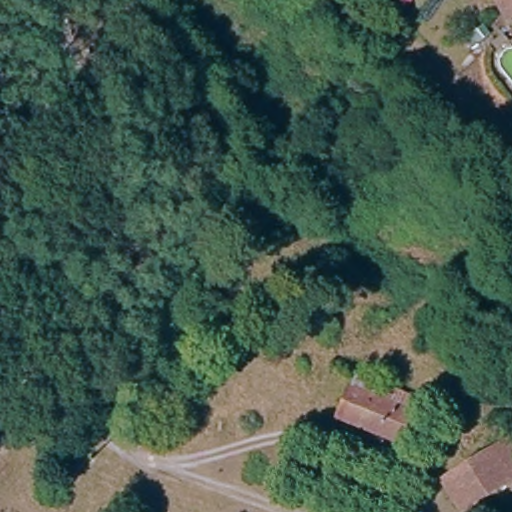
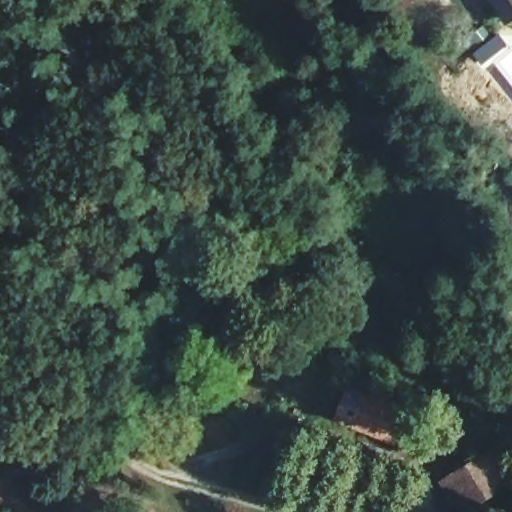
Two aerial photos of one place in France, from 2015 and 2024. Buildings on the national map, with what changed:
unchanged [(499,22),(489,0),(512,0),(512,15),(499,22)]
unchanged [(342,414),(354,385),(410,407),(399,437),(342,414)]
unchanged [(450,480),(496,445),(509,436),(512,441),(512,475),(470,509),(450,480)]

